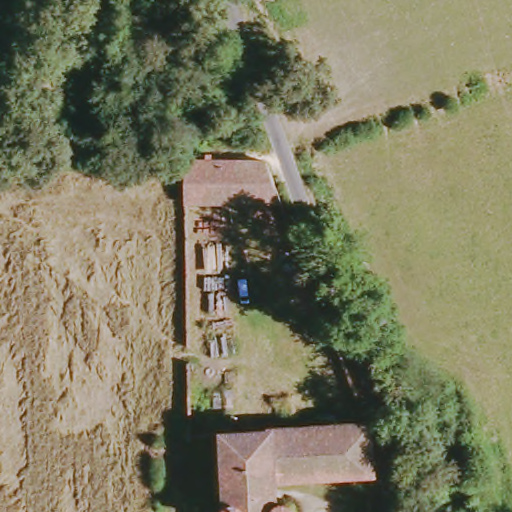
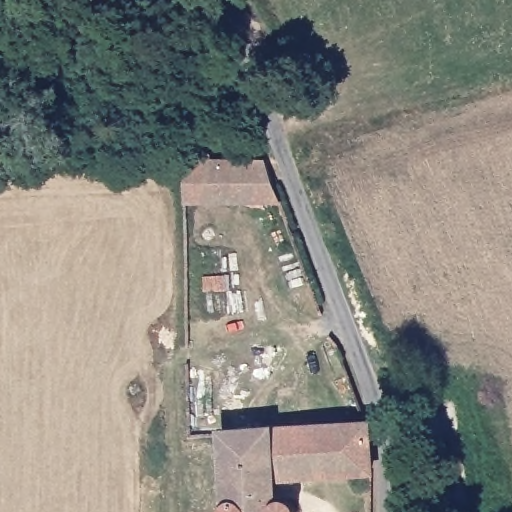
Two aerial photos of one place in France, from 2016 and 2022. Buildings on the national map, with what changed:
unchanged [(280,213),(181,209),(180,166),(262,168),(280,213)]
unchanged [(279,505),(301,508),(300,512),(222,512),(227,504),(221,441),(222,434),(274,432),(274,398),(301,398),(301,431),(371,428),(374,443),(373,476),(278,479),(279,505)]

